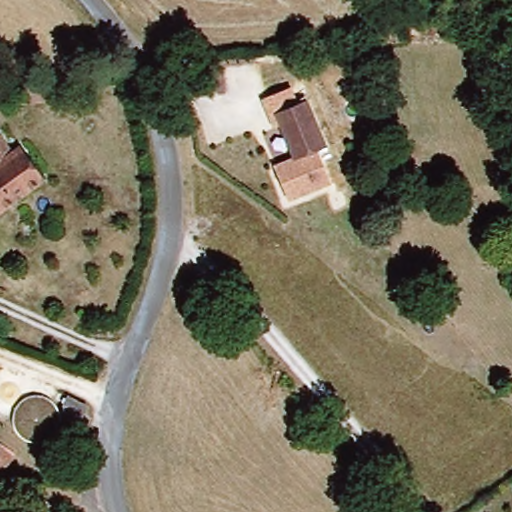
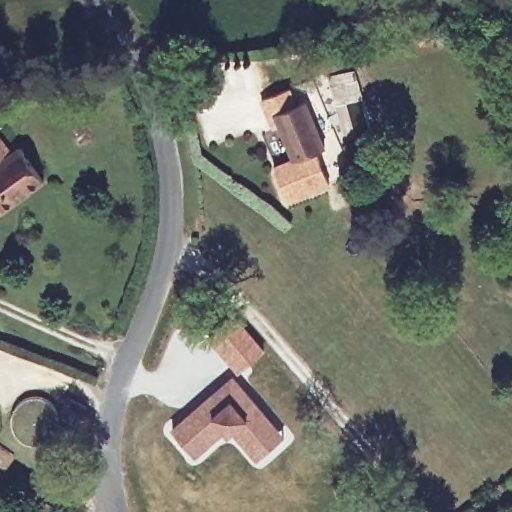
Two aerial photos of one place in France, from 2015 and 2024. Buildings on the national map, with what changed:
new [(328,79),(343,75),(345,78),(355,75),(372,133),(347,141),(328,79)]
unchanged [(27,85),(49,83),(50,104),(27,105),(27,85)]
unchanged [(289,93),(295,109),(305,105),(326,152),(318,155),(332,187),(290,205),(275,172),(295,165),(281,130),(273,133),(270,121),(262,104),(289,93)]
unchanged [(25,152),(48,189),(0,219),(0,136),(15,159),(25,152)]
new [(222,323),(227,328),(239,318),(265,350),(237,373),(206,336),(222,323)]
new [(233,374),(235,375),(285,435),(255,460),(230,431),(195,457),(169,428),(233,374)]
unchanged [(1,455),(9,459),(2,471),(0,470),(0,454),(1,455)]
unchanged [(41,512),(32,512),(35,508),(41,512)]

